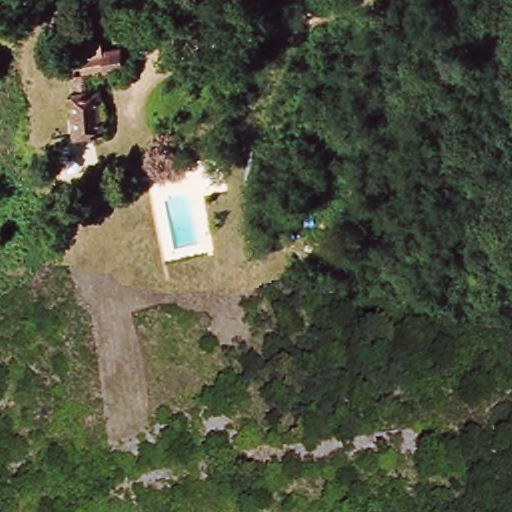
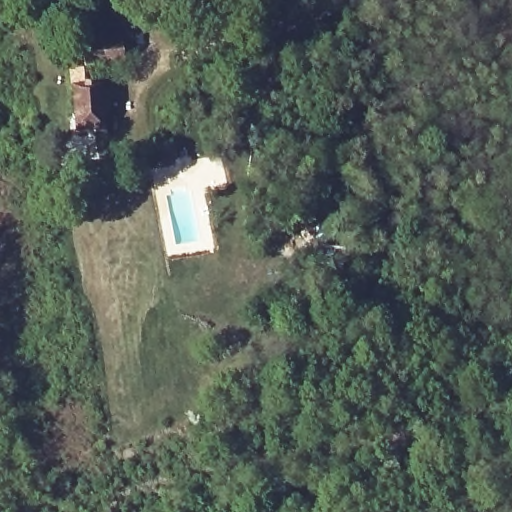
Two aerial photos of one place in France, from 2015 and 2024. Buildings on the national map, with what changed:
unchanged [(117,76),(96,77),(94,56),(113,53),(117,76)]
unchanged [(76,143),(67,89),(79,85),(86,84),(89,94),(97,94),(104,136),(76,143)]

